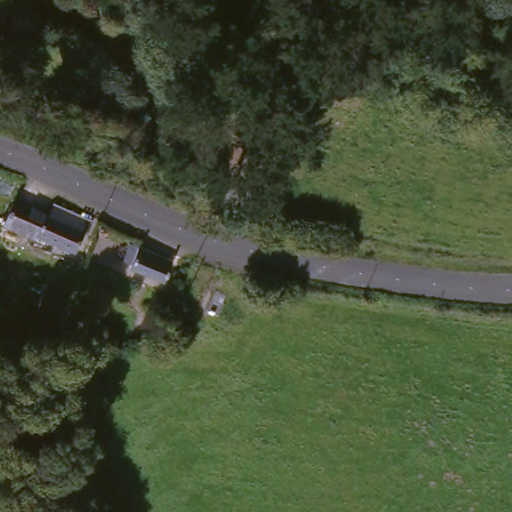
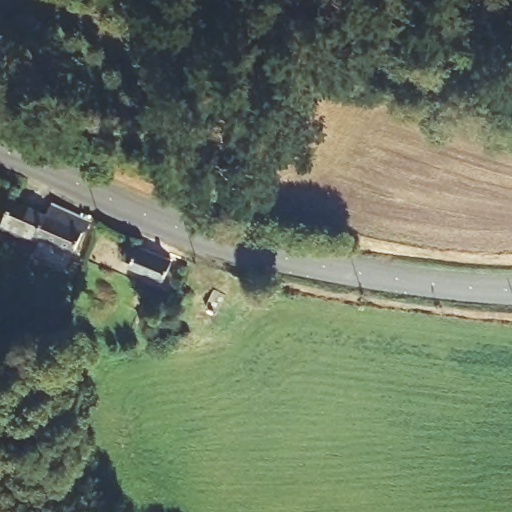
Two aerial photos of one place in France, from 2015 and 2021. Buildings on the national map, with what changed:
unchanged [(46,218),(50,211),(91,230),(85,244),(81,245),(73,260),(30,243),(31,240),(1,229),(8,203),(46,218)]
unchanged [(156,284),(119,276),(126,254),(162,262),(156,284)]

